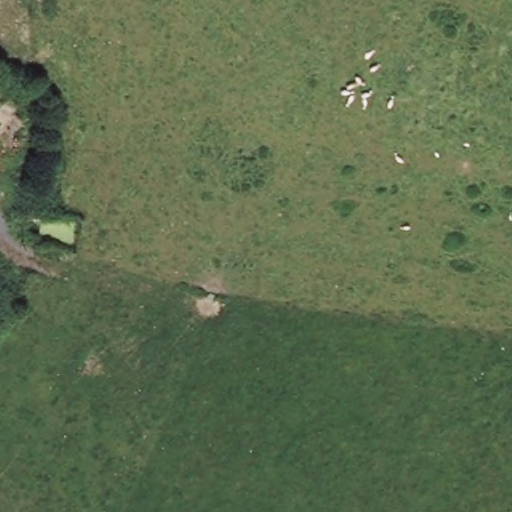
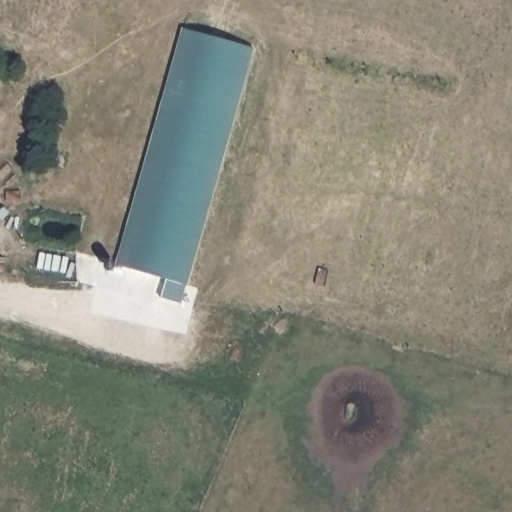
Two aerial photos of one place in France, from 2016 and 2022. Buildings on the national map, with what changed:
new [(167,278),(115,267),(114,269),(113,270),(110,271),(108,271),(106,269),(106,265),(107,262),(111,261),(113,261),(115,262),(181,29),(253,48),(182,304),(161,299),(167,278)]

